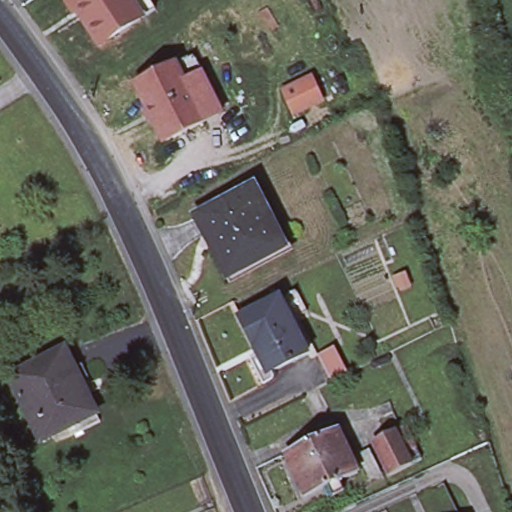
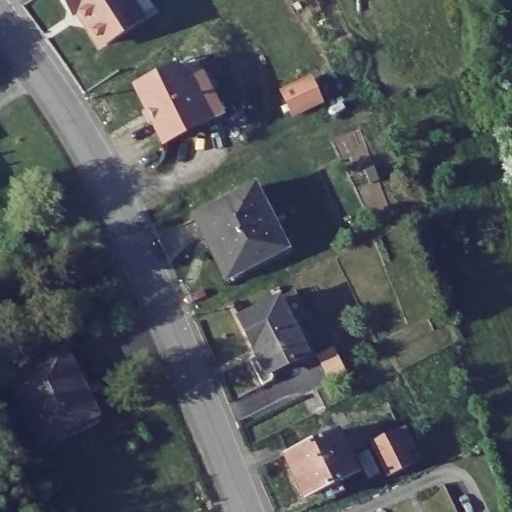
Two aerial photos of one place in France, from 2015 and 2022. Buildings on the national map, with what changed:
unchanged [(79,5),(72,4),(70,0),(133,0),(142,14),(101,40),(79,5)]
unchanged [(133,0),(153,0),(156,5),(142,14),(133,0)]
unchanged [(137,91),(177,71),(194,63),(202,80),(222,119),(205,128),(164,148),(137,91)]
unchanged [(284,91),(311,78),(322,101),(294,113),(284,91)]
unchanged [(206,237),(196,217),(255,186),(287,249),(237,274),(227,279),(206,237)]
unchanged [(255,348),(240,318),(242,317),(280,298),(309,355),(273,372),(268,375),(255,348)]
unchanged [(75,424),(42,440),(11,376),(66,350),(76,370),(101,422),(79,432),(75,424)]
unchanged [(373,441),(395,430),(406,425),(422,460),(412,465),(390,476),(373,441)]
unchanged [(334,496),(329,486),(306,497),(287,454),(339,430),(358,473),(340,481),(344,492),(334,496)]
unchanged [(382,472),(369,478),(358,455),(370,449),(382,472)]
unchanged [(429,489),(441,484),(454,512),(440,512),(429,489)]

